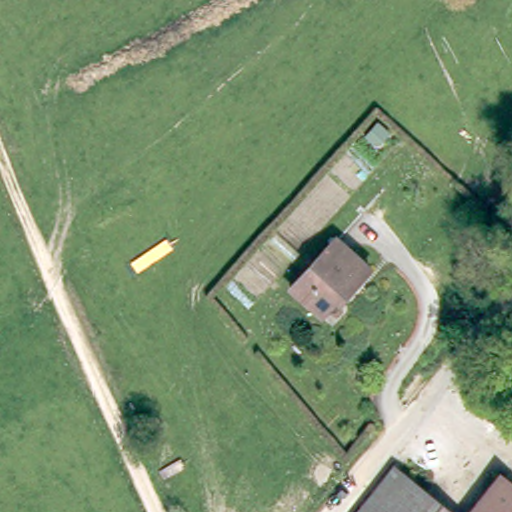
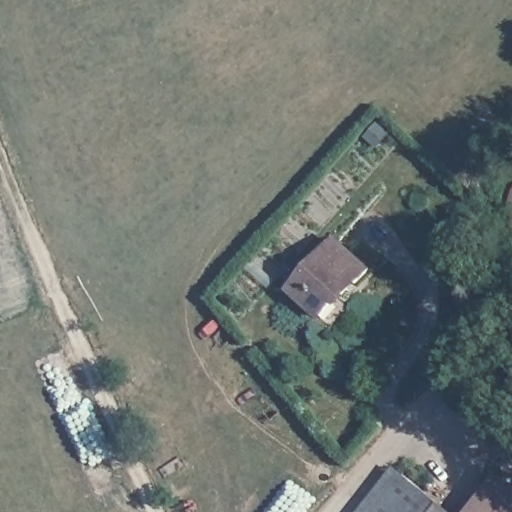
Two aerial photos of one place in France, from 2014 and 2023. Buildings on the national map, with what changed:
unchanged [(497,230),(512,211),(512,241),(497,230)]
unchanged [(337,239),(370,269),(346,295),(343,293),(321,316),(291,290),(337,239)]
unchanged [(409,475),(379,512),(363,512),(399,467),(409,475)]
unchanged [(512,480),(512,512),(474,512),(504,474),(512,480)]
unchanged [(379,512),(409,475),(455,512),(379,512)]

